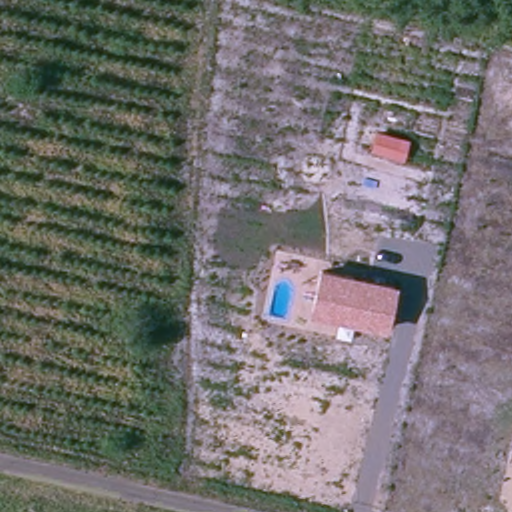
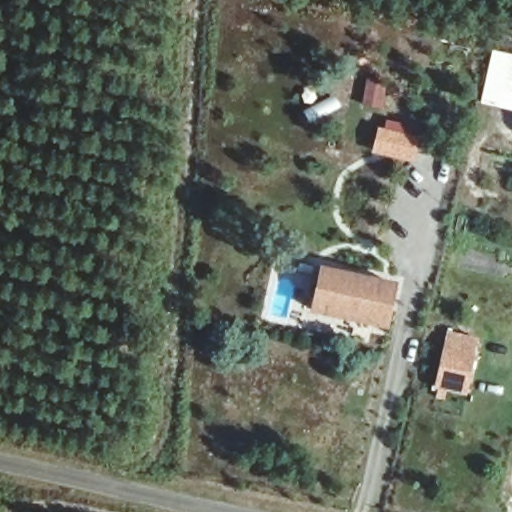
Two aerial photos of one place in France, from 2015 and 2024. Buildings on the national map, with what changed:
new [(491,49),(512,54),(512,111),(479,103),(491,49)]
unchanged [(372,150),(377,128),(412,140),(405,161),(372,150)]
unchanged [(399,283),(388,331),(311,313),(321,267),(399,283)]
new [(480,339),(467,398),(447,392),(445,400),(436,398),(438,389),(434,388),(446,330),(480,339)]

